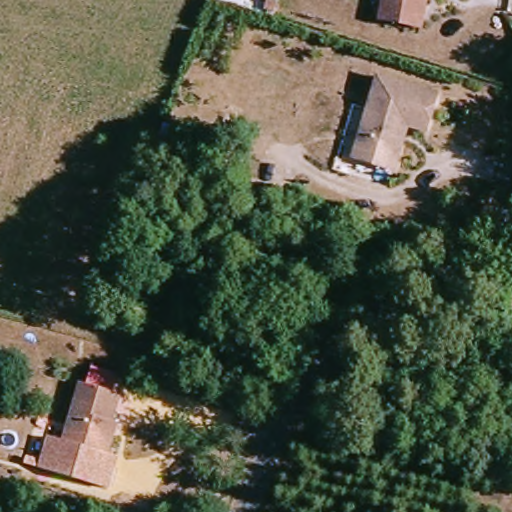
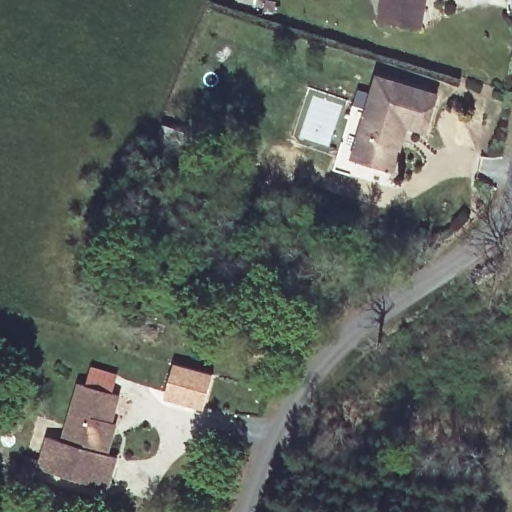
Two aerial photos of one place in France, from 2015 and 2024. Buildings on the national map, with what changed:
unchanged [(383,22),(387,0),(427,0),(422,29),(383,22)]
unchanged [(267,16),(255,12),(260,2),(270,6),(267,16)]
unchanged [(405,172),(396,169),(365,160),(380,110),(391,77),(450,96),(439,132),(419,126),(412,149),(405,172)]
unchanged [(365,160),(396,169),(395,174),(349,161),(366,106),(380,110),(365,160)]
new [(214,374),(204,411),(165,400),(176,363),(214,374)]
unchanged [(115,437),(109,457),(65,444),(84,385),(122,397),(114,425),(119,427),(115,437)]

